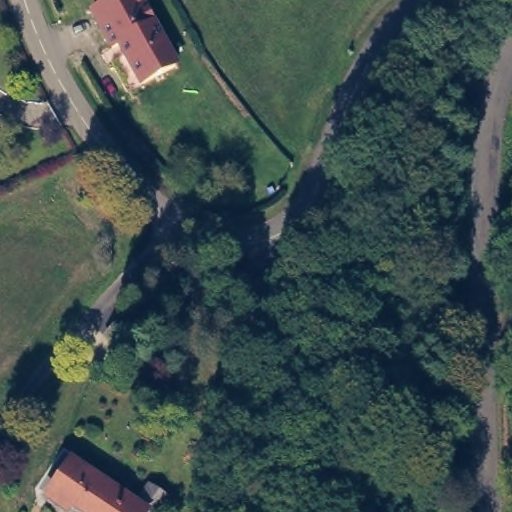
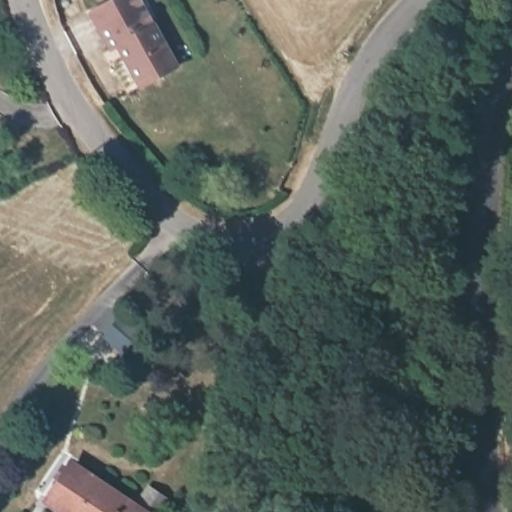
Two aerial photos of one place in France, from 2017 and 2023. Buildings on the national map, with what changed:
unchanged [(110,0),(144,0),(178,67),(140,88),(117,48),(109,51),(89,11),(110,0)]
unchanged [(61,476),(56,472),(62,463),(67,466),(72,460),(146,509),(144,512),(71,512),(67,510),(66,512),(52,512),(42,503),(47,496),(61,476)]

